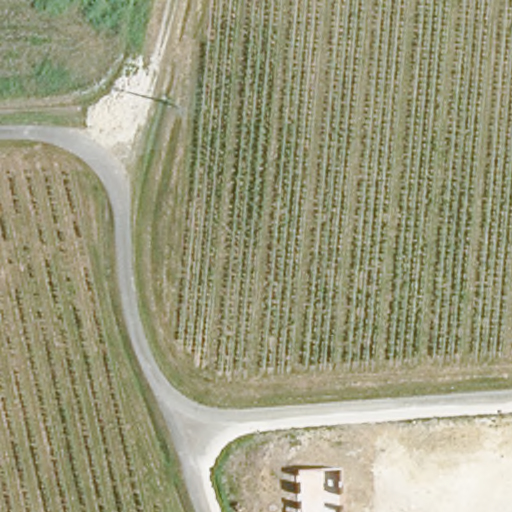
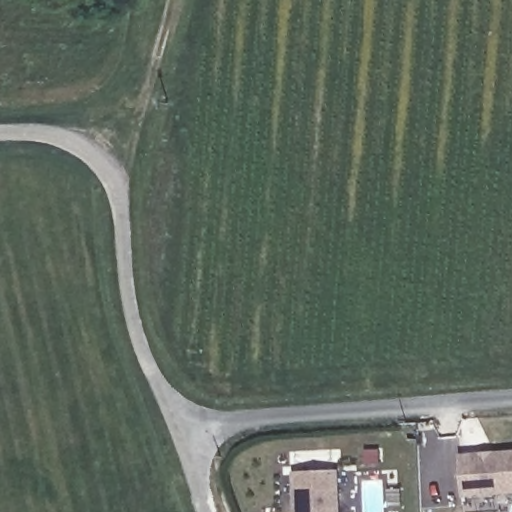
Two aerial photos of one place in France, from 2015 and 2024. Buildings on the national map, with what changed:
new [(462,453),(512,450),(512,494),(464,498),(462,453)]
new [(342,512),(297,512),(296,470),(342,468),(342,512)]

